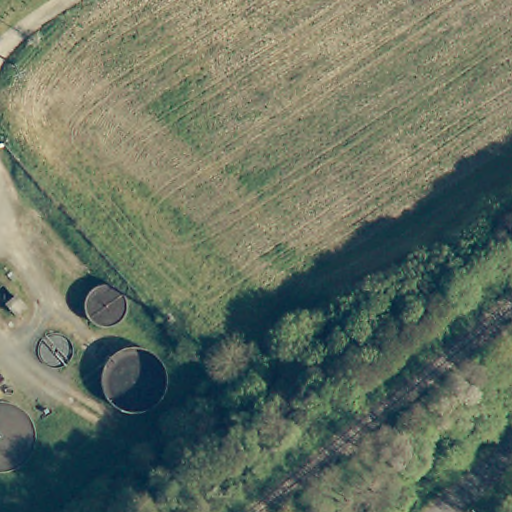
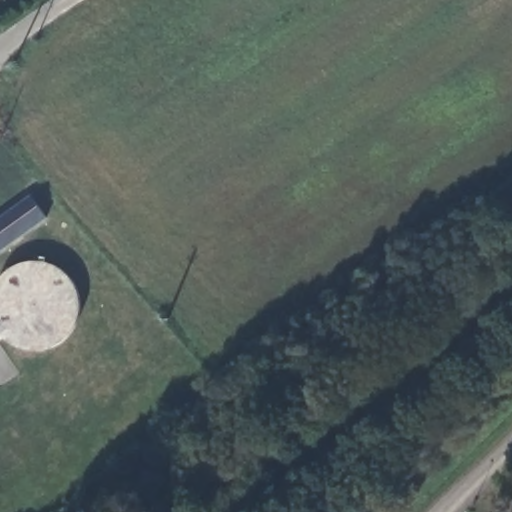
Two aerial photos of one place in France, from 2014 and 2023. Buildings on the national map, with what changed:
new [(48,218),(0,252),(0,218),(31,195),(48,218)]
demolished [(20,304),(10,312),(0,300),(10,292),(20,304)]

